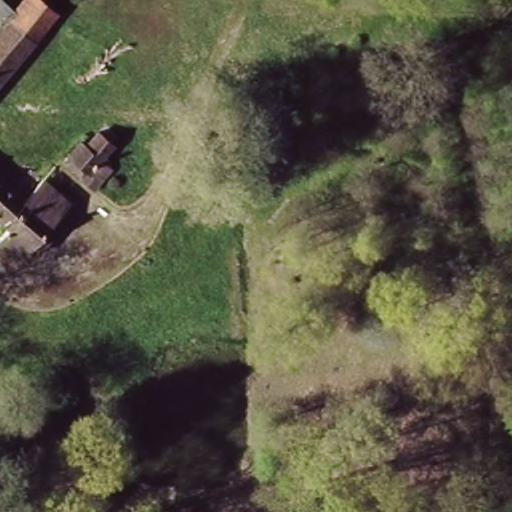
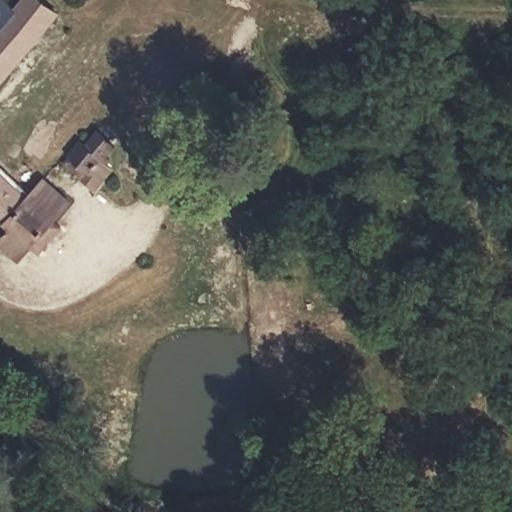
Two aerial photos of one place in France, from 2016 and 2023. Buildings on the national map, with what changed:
unchanged [(0,9),(5,4),(15,12),(24,0),(49,0),(62,11),(0,84),(0,9)]
unchanged [(87,135),(92,139),(107,124),(119,139),(106,153),(117,164),(97,181),(70,156),(87,135)]
unchanged [(46,178),(65,195),(49,214),(58,222),(35,248),(22,239),(10,256),(0,248),(0,230),(5,224),(0,219),(0,173),(29,198),(46,178)]

